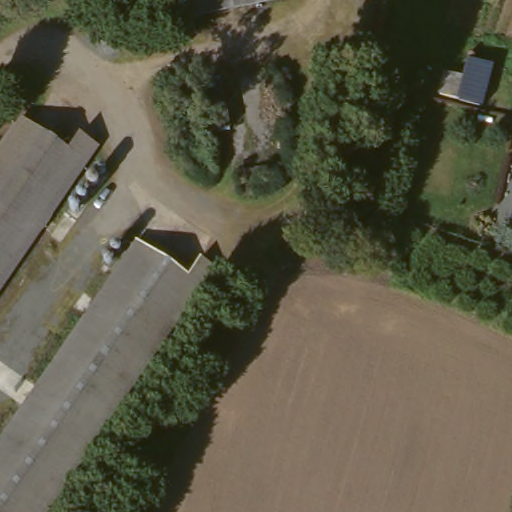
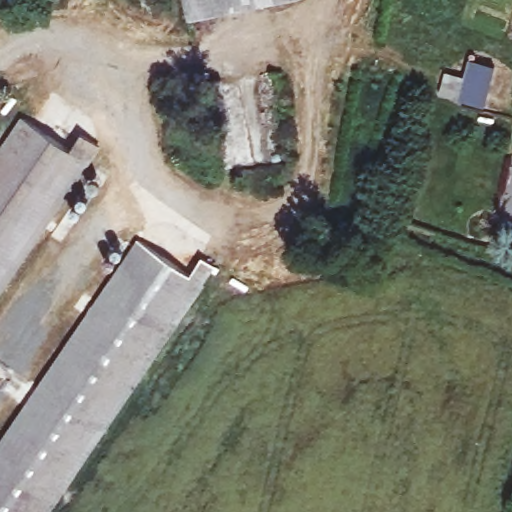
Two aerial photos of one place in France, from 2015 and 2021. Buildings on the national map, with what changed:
unchanged [(277,0),(233,9),(193,18),(189,0),(277,0)]
unchanged [(494,58),(479,88),(475,96),(461,89),(453,84),(451,84),(434,76),(445,54),(463,63),(471,47),(494,58)]
unchanged [(93,136),(109,151),(108,153),(0,301),(0,165),(23,132),(31,122),(54,140),(75,157),(83,147),(93,136)]
unchanged [(0,449),(149,239),(197,273),(208,256),(223,267),(50,512),(0,512),(0,449)]

